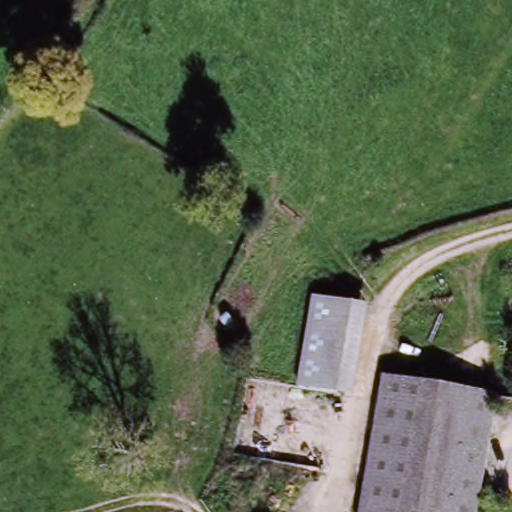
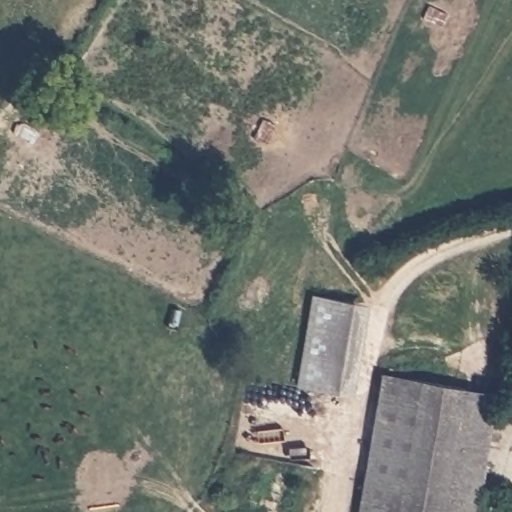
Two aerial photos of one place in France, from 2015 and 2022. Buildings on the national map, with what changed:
unchanged [(310,295),(351,303),(332,392),(291,384),(310,295)]
unchanged [(461,389),(440,512),(352,512),(377,374),(461,389)]
unchanged [(492,394),(473,512),(440,512),(461,389),(492,394)]

